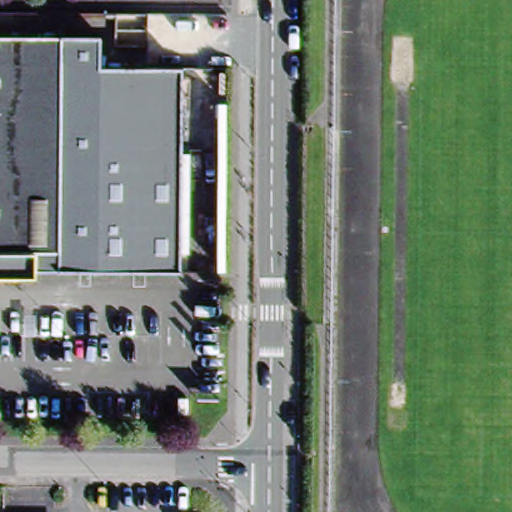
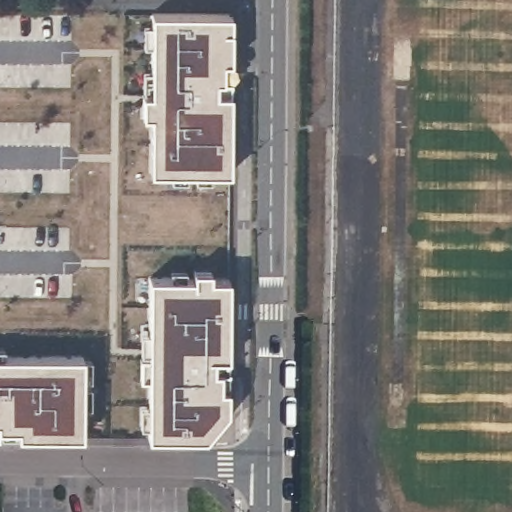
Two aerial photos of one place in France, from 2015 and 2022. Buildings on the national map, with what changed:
new [(228,16),(228,62),(220,62),(220,80),(228,80),(227,172),(148,172),(148,15),(228,16)]
demolished [(100,110),(182,110),(182,269),(37,269),(37,275),(0,275),(0,33),(100,33),(100,110)]
new [(147,282),(225,282),(225,374),(218,374),(218,391),(225,391),(225,413),(205,433),(145,433),(147,282)]
new [(80,433),(17,433),(17,426),(0,426),(0,353),(80,353),(80,433)]

